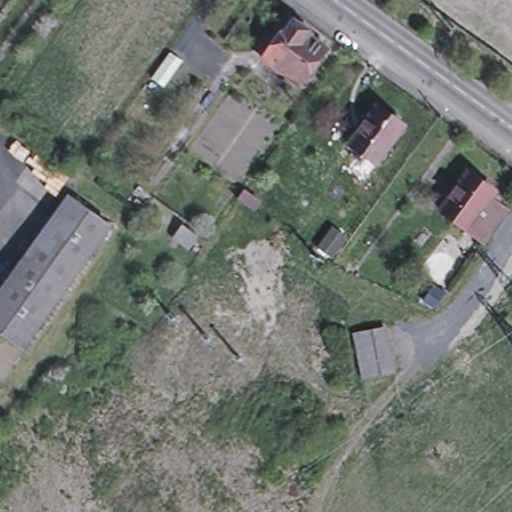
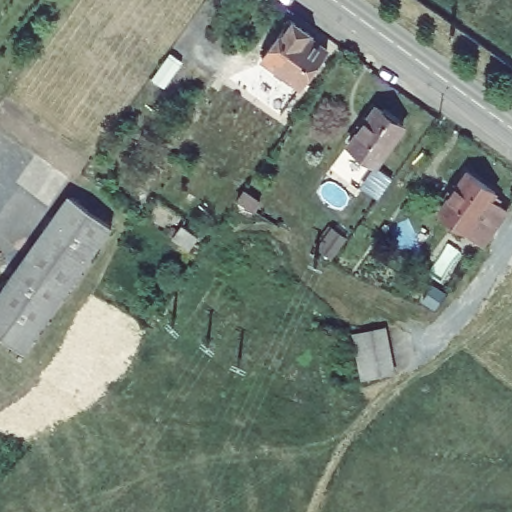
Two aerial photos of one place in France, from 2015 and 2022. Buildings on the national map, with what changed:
unchanged [(303,32),(301,35),(317,47),(291,84),(252,56),(281,16),(303,32)]
unchanged [(403,125),(375,162),(348,142),(376,105),(403,125)]
unchanged [(493,191),(490,197),(505,209),(483,238),(468,227),(467,228),(440,209),(467,171),(493,191)]
unchanged [(245,189),(259,200),(253,207),(238,197),(245,189)]
unchanged [(23,347),(0,330),(0,289),(68,192),(111,223),(23,347)]
unchanged [(198,234),(189,246),(172,235),(182,222),(198,234)]
unchanged [(446,296),(440,304),(422,296),(431,285),(446,296)]
unchanged [(383,326),(393,371),(362,377),(352,331),(383,326)]

